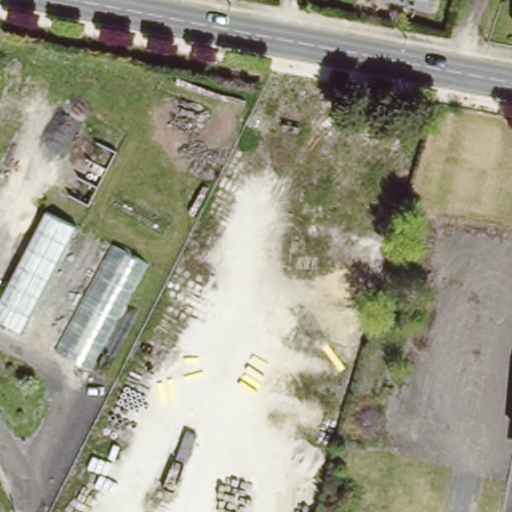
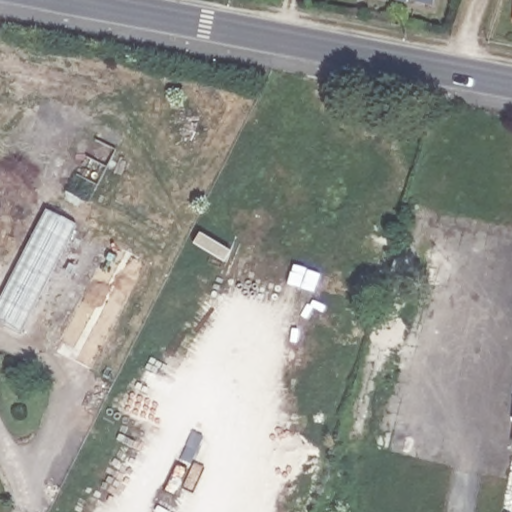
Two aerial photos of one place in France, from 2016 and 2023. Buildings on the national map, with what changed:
unchanged [(453,9),(412,0),(455,0),(453,9)]
unchanged [(51,206),(81,222),(25,330),(0,317),(0,305),(51,206)]
unchanged [(116,244),(152,264),(95,371),(58,352),(116,244)]

